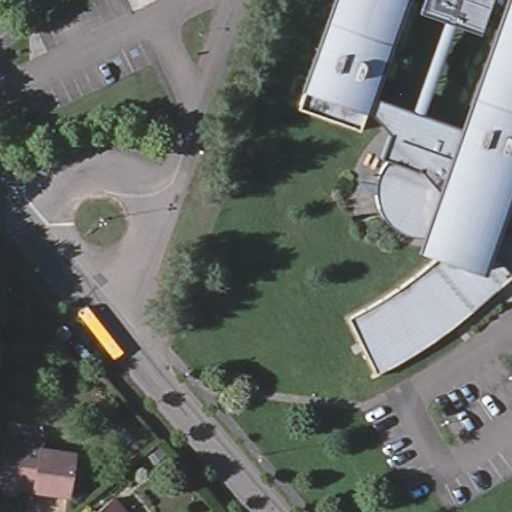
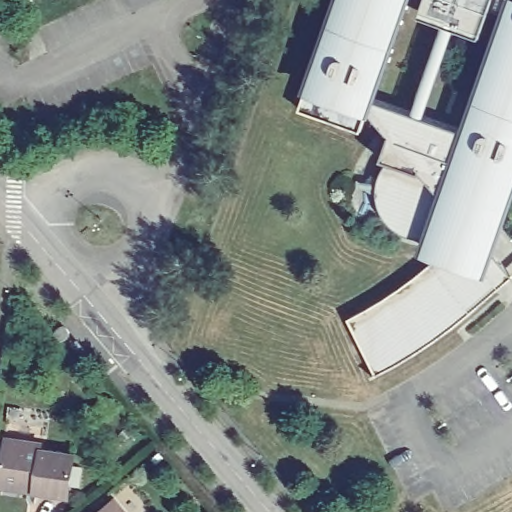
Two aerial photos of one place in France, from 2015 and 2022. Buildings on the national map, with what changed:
unchanged [(478,312),(481,315),(456,336),(379,384),(375,381),(380,373),(353,324),(399,300),(430,277),(445,261),(430,254),(433,246),(411,241),(397,227),(388,213),(382,196),(392,164),(386,161),(394,142),(371,118),(364,135),(306,110),(345,0),(416,0),(386,84),(425,97),(436,101),(480,116),(512,21),(512,215),(496,258),(512,277),(512,283),(478,312)]
unchanged [(492,19),(469,11),(458,7),(437,0),(499,0),(492,19)]
unchanged [(436,101),(425,97),(458,7),(469,11),(436,101)]
unchanged [(43,438),(43,447),(73,450),(69,493),(36,490),(0,487),(0,467),(3,436),(43,438)]
unchanged [(128,512),(98,512),(115,498),(128,512)]

